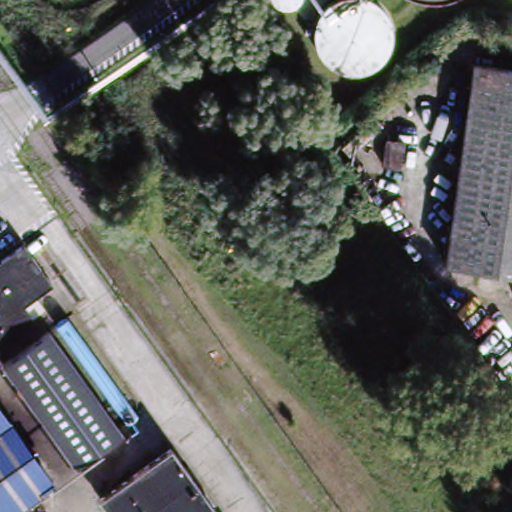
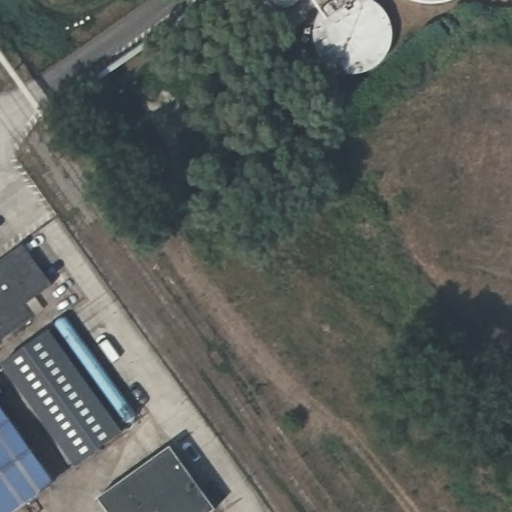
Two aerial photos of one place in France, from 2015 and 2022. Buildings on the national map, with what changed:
demolished [(512,73),(512,273),(439,263),(467,67),(512,73)]
demolished [(404,145),(400,170),(384,168),(387,143),(404,145)]
unchanged [(50,284),(47,287),(52,293),(39,302),(35,295),(23,304),(34,318),(0,342),(0,260),(21,244),(50,284)]
unchanged [(47,330),(120,432),(75,466),(1,364),(47,330)]
unchanged [(0,424),(0,410),(6,419),(0,424)]
unchanged [(13,512),(0,512),(0,424),(6,419),(52,484),(13,512)]
unchanged [(200,512),(105,512),(95,498),(166,448),(209,506),(200,512)]

